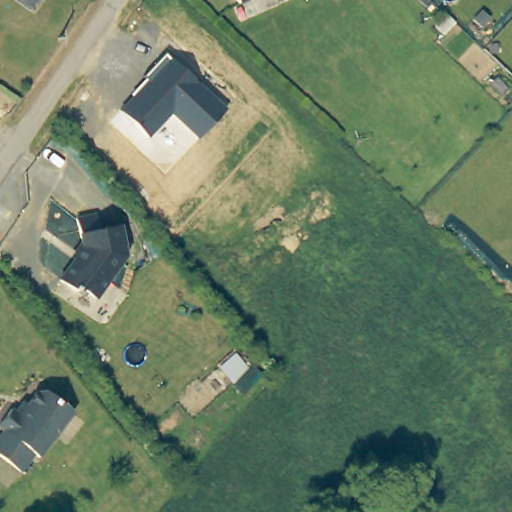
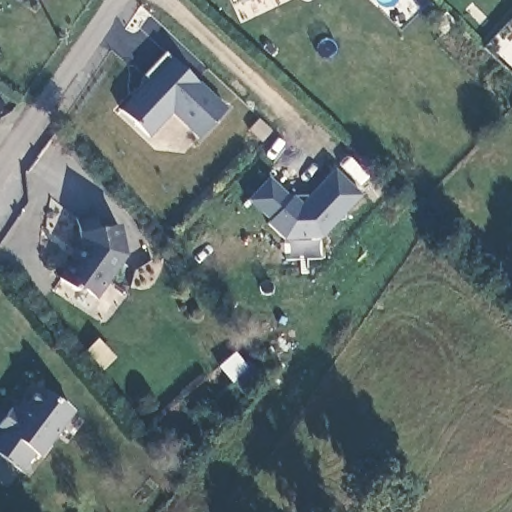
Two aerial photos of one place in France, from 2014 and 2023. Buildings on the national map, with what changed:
unchanged [(237,2),(236,0),(241,0),(237,2)]
unchanged [(170,112),(149,137),(118,107),(165,53),(225,107),(198,139),(170,112)]
new [(321,238),(285,240),(266,223),(270,219),(247,199),(268,175),(302,203),(334,168),(363,193),(321,238)]
unchanged [(77,210),(98,208),(99,223),(120,221),(123,251),(92,293),(81,285),(72,285),(56,274),(80,242),(77,210)]
unchanged [(33,398),(62,418),(29,466),(0,446),(0,420),(1,418),(9,424),(26,400),(33,398)]

